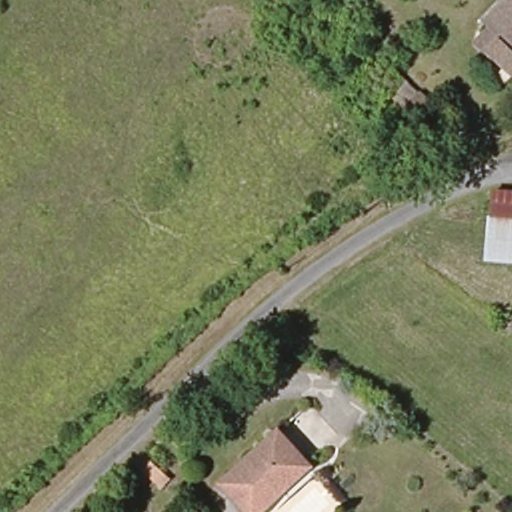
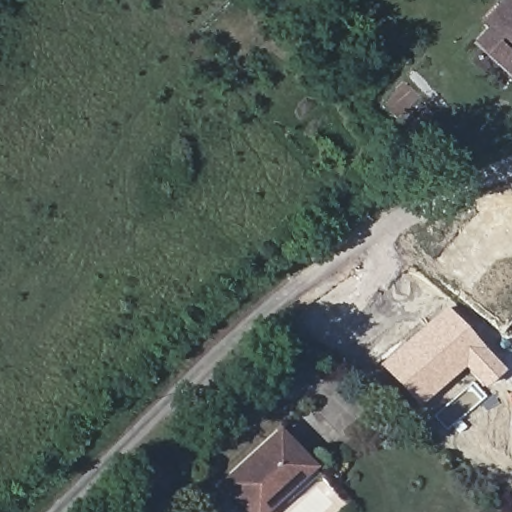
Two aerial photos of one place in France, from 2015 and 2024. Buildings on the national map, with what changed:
unchanged [(501,36),(484,19),(482,16),(485,13),(498,0),(512,0),(512,75),(487,51),(501,36)]
unchanged [(512,189),(512,215),(495,214),(497,189),(512,189)]
unchanged [(512,263),(490,261),(491,214),(495,214),(512,215),(512,263)]
new [(481,388),(462,368),(418,407),(378,364),(445,306),(502,371),(481,388)]
unchanged [(281,488),(254,512),(245,512),(217,479),(274,427),(319,476),(292,501),(281,488)]

